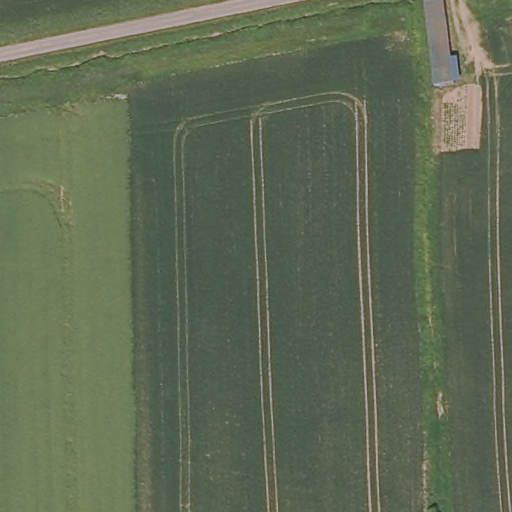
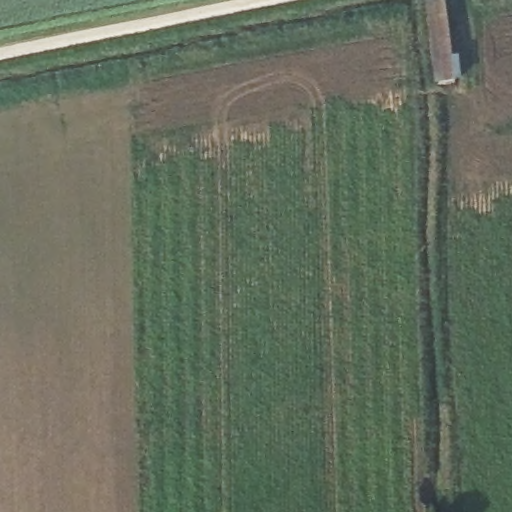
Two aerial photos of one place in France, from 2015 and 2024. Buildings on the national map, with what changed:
unchanged [(450,5),(461,85),(438,90),(428,7),(450,5)]

